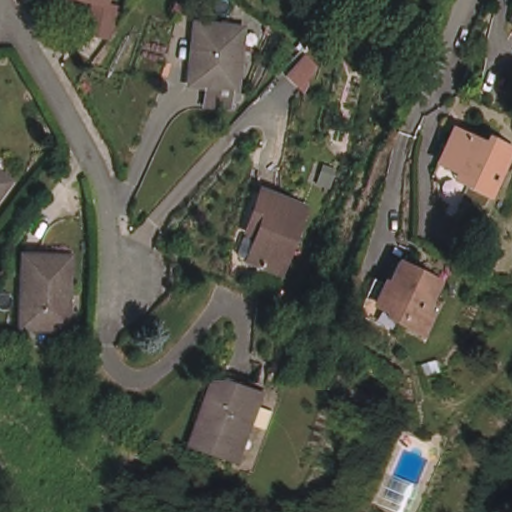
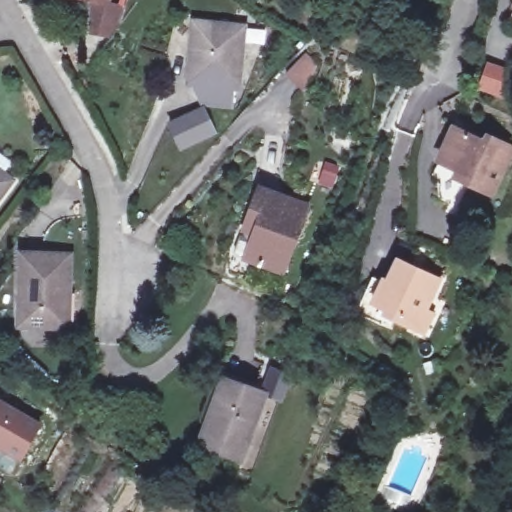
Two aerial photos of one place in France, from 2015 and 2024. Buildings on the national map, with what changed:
unchanged [(85,0),(102,0),(102,3),(128,9),(103,41),(92,36),(85,0)]
unchanged [(203,101),(205,82),(187,81),(195,18),(242,22),(235,83),(232,103),(203,101)]
new [(303,56),(317,63),(308,91),(287,79),(303,56)]
unchanged [(457,177),(439,168),(455,133),(488,149),(492,142),(512,150),(488,199),(469,190),(455,183),(457,177)]
unchanged [(12,187),(0,203),(0,178),(12,187)]
unchanged [(235,256),(240,240),(243,238),(254,242),(257,234),(246,230),(250,217),(262,189),(310,205),(282,274),(247,262),(237,258),(235,256)]
unchanged [(73,262),(72,336),(26,335),(28,262),(73,262)]
unchanged [(428,335),(422,333),(405,325),(407,320),(385,308),(394,287),(404,264),(445,283),(430,314),(437,317),(428,335)]
unchanged [(385,308),(407,320),(405,325),(400,335),(363,317),(380,279),(394,287),(385,308)]
unchanged [(267,395),(247,463),(205,450),(227,382),(267,395)]
new [(5,395),(2,402),(42,425),(22,459),(0,446),(0,392),(5,395)]

